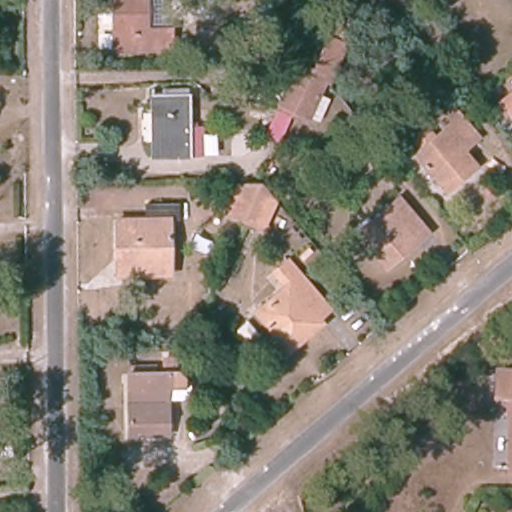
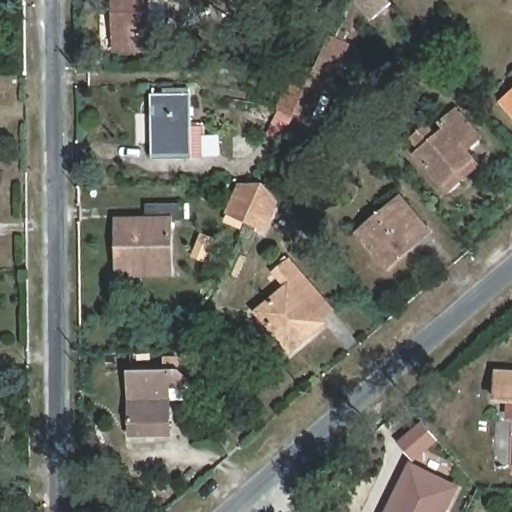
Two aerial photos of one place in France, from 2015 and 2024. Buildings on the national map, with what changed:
unchanged [(166,52),(108,52),(109,0),(157,0),(157,32),(166,32),(166,52)]
unchanged [(293,115),(281,109),(297,71),(313,71),(326,43),(345,54),(331,91),(326,85),(310,123),(293,115)]
unchanged [(499,106),(512,94),(512,121),(499,106)]
unchanged [(195,160),(160,159),(161,99),(196,100),(195,160)]
unchanged [(439,127),(458,113),(482,140),(466,155),(473,163),(442,189),(418,159),(446,135),(439,127)]
unchanged [(245,224),(228,216),(242,187),(261,187),(276,205),(262,233),(245,224)]
unchanged [(413,246),(383,271),(362,245),(356,237),(384,213),(397,201),(421,230),(426,236),(413,246)]
unchanged [(117,269),(117,229),(144,229),(144,212),(180,212),(180,229),(170,228),(170,282),(138,282),(117,282),(117,269)]
unchanged [(279,345),(255,317),(284,292),(272,277),(287,265),(328,314),(317,324),(321,328),(297,347),(287,355),(279,345)]
unchanged [(130,424),(131,375),(189,375),(197,381),(197,387),(172,388),(172,439),(152,438),(130,438),(130,424)]
unchanged [(504,404),(505,376),(512,376),(512,404),(504,404)]
new [(447,482),(440,498),(412,485),(399,512),(392,512),(414,466),(447,482)]
new [(440,498),(447,482),(459,488),(447,512),(399,512),(412,485),(440,498)]

